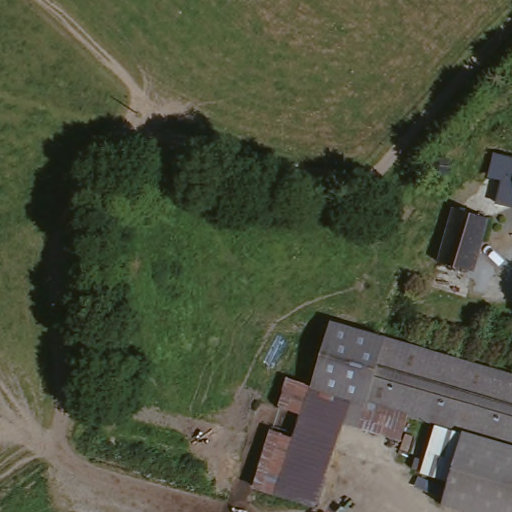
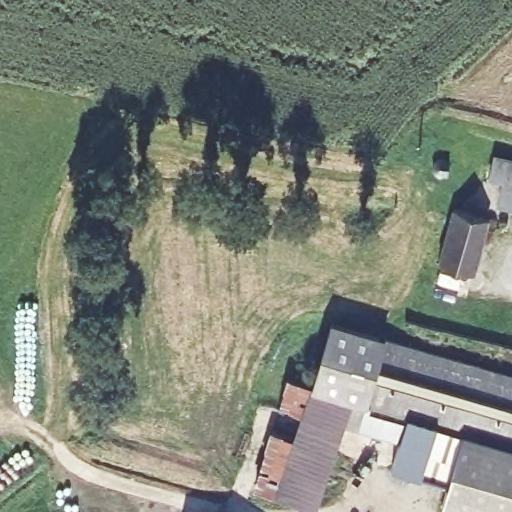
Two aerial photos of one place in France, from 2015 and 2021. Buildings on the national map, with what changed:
unchanged [(508,154),(512,155),(512,195),(495,190),(508,154)]
unchanged [(449,164),(447,177),(435,175),(438,162),(449,164)]
unchanged [(458,207),(493,217),(478,269),(443,260),(458,207)]
unchanged [(309,385),(333,321),(512,371),(512,451),(501,492),(447,478),(424,472),(444,425),(354,401),(319,507),(261,483),(285,376),(309,385)]
unchanged [(447,478),(501,492),(512,451),(512,512),(475,512),(442,502),(447,478)]

